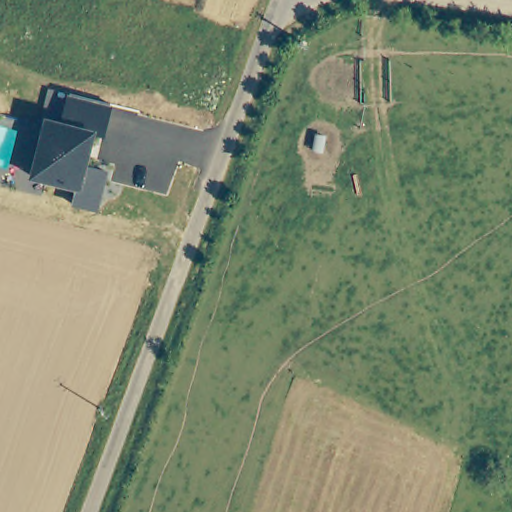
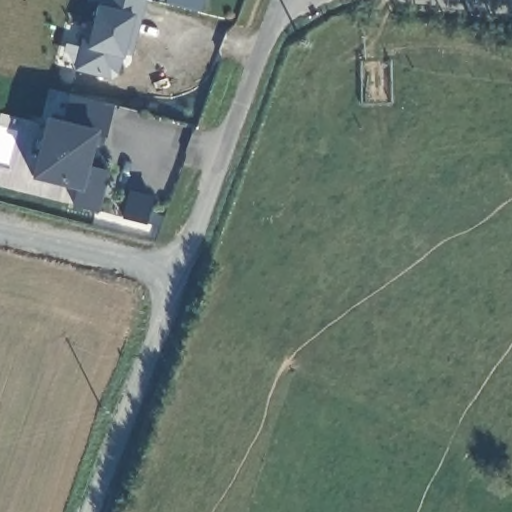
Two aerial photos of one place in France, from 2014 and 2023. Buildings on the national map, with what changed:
new [(132,55),(123,53),(118,73),(111,78),(73,69),(79,43),(86,45),(97,5),(97,0),(145,0),(132,55)]
unchanged [(70,94),(112,106),(105,137),(95,135),(88,167),(109,171),(99,212),(73,206),(77,190),(29,178),(45,115),(49,89),(70,94)]

